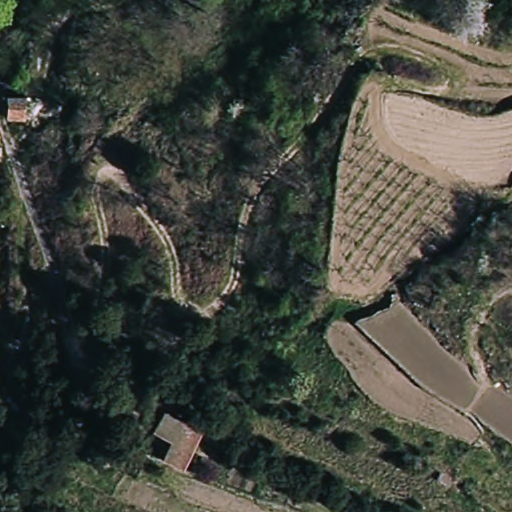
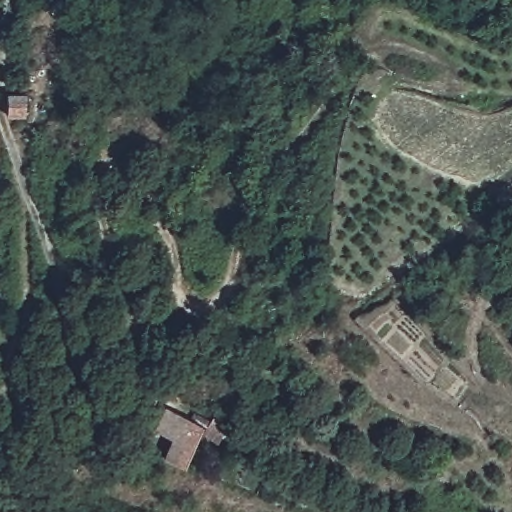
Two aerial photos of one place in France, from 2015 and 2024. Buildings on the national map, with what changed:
unchanged [(35,94),(32,119),(15,116),(18,92),(35,94)]
unchanged [(158,453),(167,433),(150,424),(160,405),(198,425),(179,464),(158,453)]

